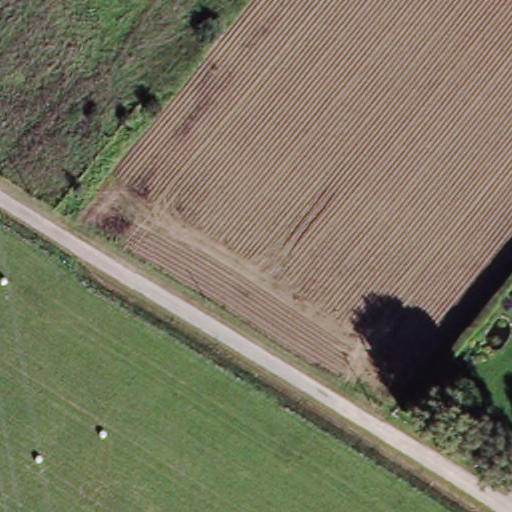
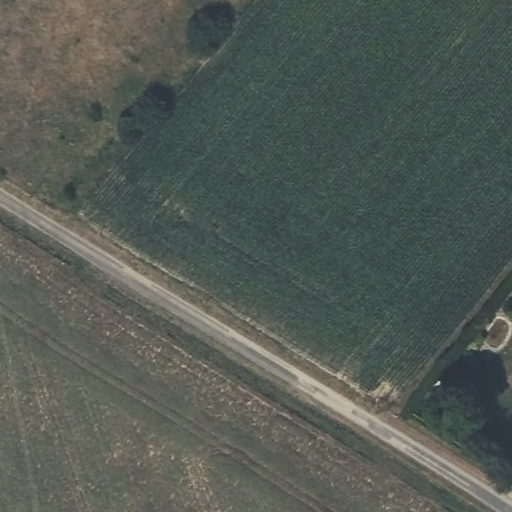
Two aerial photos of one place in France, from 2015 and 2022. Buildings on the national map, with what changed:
[]

